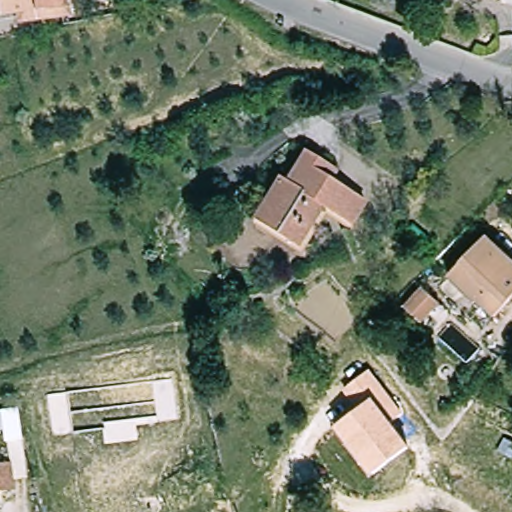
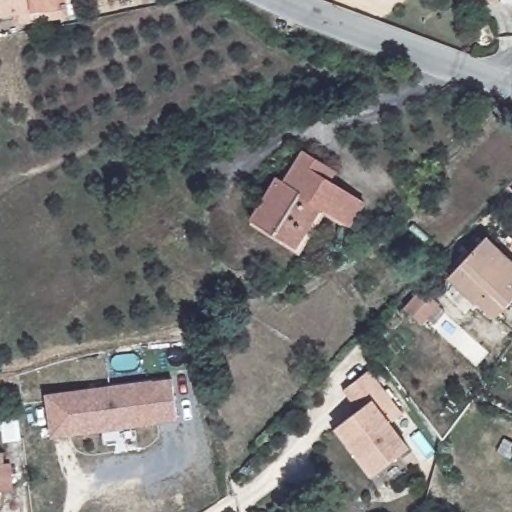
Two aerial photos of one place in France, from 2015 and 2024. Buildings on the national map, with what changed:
unchanged [(12,12),(0,14),(0,0),(65,0),(68,14),(14,23),(12,12)]
unchanged [(299,248),(255,220),(282,178),(288,183),(307,152),(339,172),(333,182),(368,204),(354,225),(325,207),(299,248)]
unchanged [(458,270),(487,239),(512,263),(512,297),(494,317),(478,303),(475,305),(449,280),(458,270)]
unchanged [(405,307),(422,288),(438,302),(422,324),(405,307)]
unchanged [(369,369),(403,413),(392,425),(409,446),(373,474),(337,426),(353,412),(342,391),(369,369)]
new [(173,378),(178,421),(51,438),(45,394),(173,378)]
unchanged [(19,441),(3,443),(0,425),(0,411),(15,409),(19,441)]
unchanged [(13,453),(13,464),(14,489),(0,490),(0,453),(13,453)]

